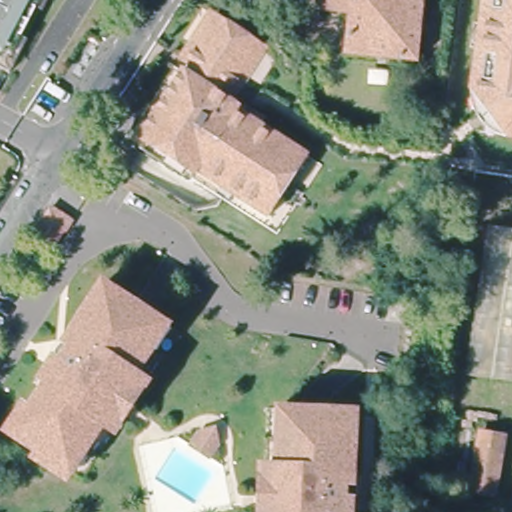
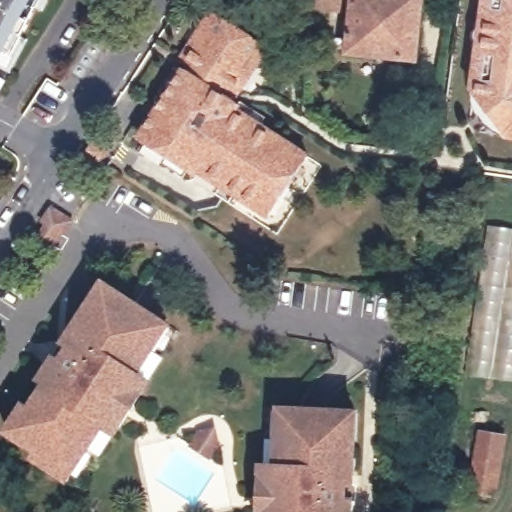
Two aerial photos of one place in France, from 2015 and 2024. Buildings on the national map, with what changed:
unchanged [(44,14),(39,11),(24,39),(30,42),(11,75),(0,69),(0,0),(52,0),(44,14)]
unchanged [(354,0),(422,0),(414,64),(346,55),(354,0)]
unchanged [(502,141),(500,140),(495,138),(492,136),(489,134),(486,132),(483,129),(481,127),(478,123),(476,120),(474,115),(472,111),(471,107),(470,102),(470,98),(472,97),(481,0),(512,0),(512,141),(509,141),(507,143),(502,141)]
unchanged [(262,212),(197,172),(195,175),(140,141),(180,74),(185,66),(179,62),(207,15),(262,49),(235,95),(227,106),(235,111),(233,114),(298,154),(306,159),(271,217),(262,212)]
unchanged [(108,155),(101,167),(89,159),(86,158),(94,146),(108,155)]
unchanged [(40,242),(50,227),(45,223),(52,211),(71,223),(54,250),(40,242)]
unchanged [(473,380),(492,226),(512,228),(512,384),(473,380)]
unchanged [(117,410),(92,449),(87,446),(72,470),(13,431),(29,407),(35,410),(60,371),(55,367),(62,355),(70,343),(75,346),(98,312),(92,308),(109,283),(168,322),(151,347),(156,350),(135,383),(141,387),(130,404),(123,414),(117,410)]
unchanged [(345,512),(277,512),(277,504),(271,504),(272,493),(273,473),(278,473),(280,433),(285,433),(287,405),(356,407),(355,438),(349,437),(347,479),(353,479),(353,494),(352,507),(345,507),(345,512)]
unchanged [(200,433),(215,430),(217,443),(209,459),(191,448),(200,433)]
unchanged [(450,491),(460,431),(480,435),(468,494),(450,491)]
unchanged [(503,439),(493,499),(468,494),(480,435),(503,439)]

